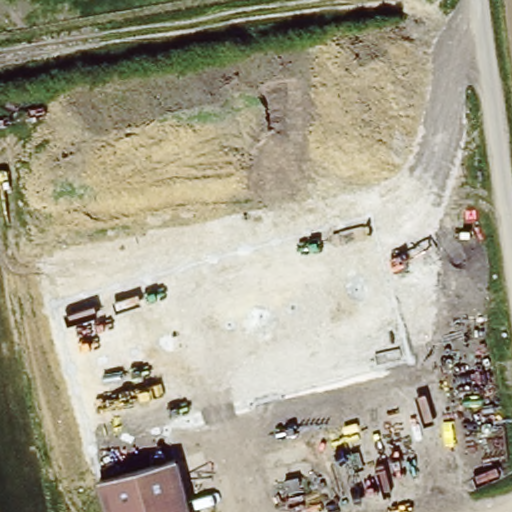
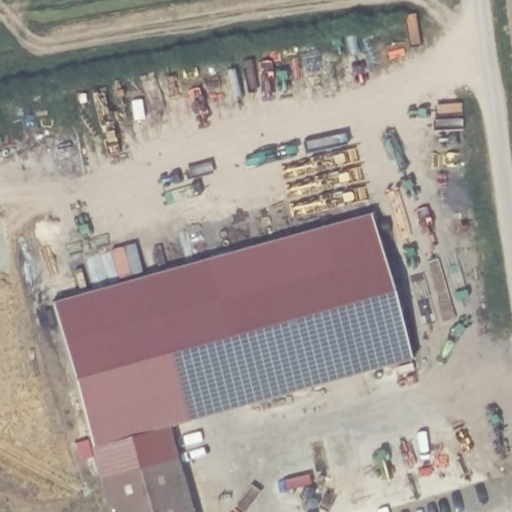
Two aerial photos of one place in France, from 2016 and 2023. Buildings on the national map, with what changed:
new [(101,481),(53,304),(373,216),(412,361),(167,429),(177,460),(101,481)]
unchanged [(177,460),(191,512),(104,512),(96,482),(177,460)]

